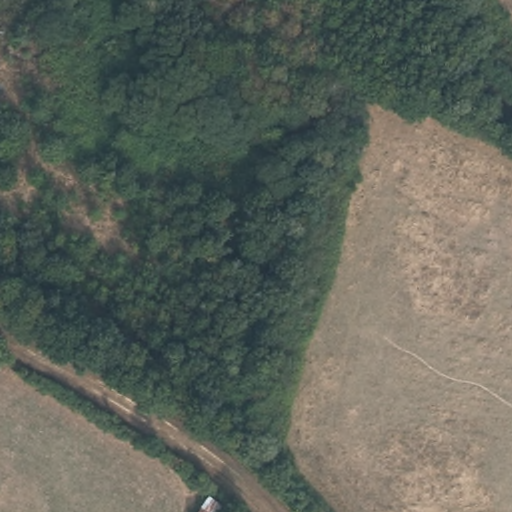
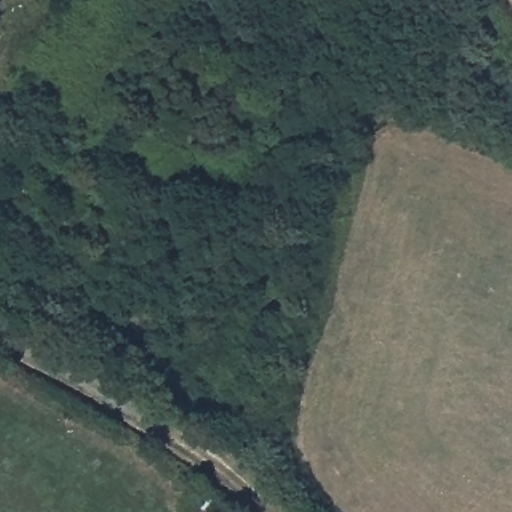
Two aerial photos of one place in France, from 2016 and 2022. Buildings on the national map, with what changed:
unchanged [(199,505),(209,512),(194,512),(199,505)]

